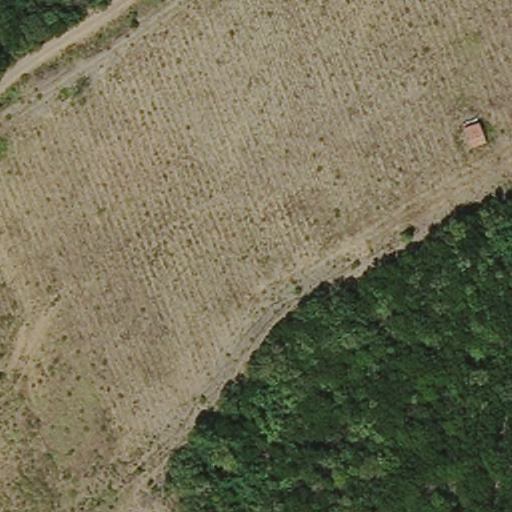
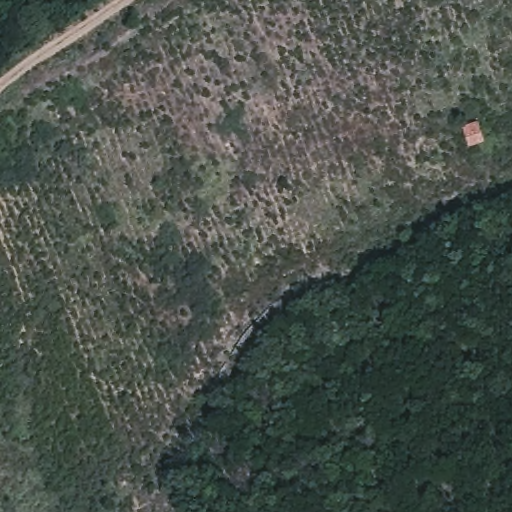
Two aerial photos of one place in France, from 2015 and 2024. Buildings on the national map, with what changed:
unchanged [(462,126),(478,123),(482,146),(466,148),(462,126)]

